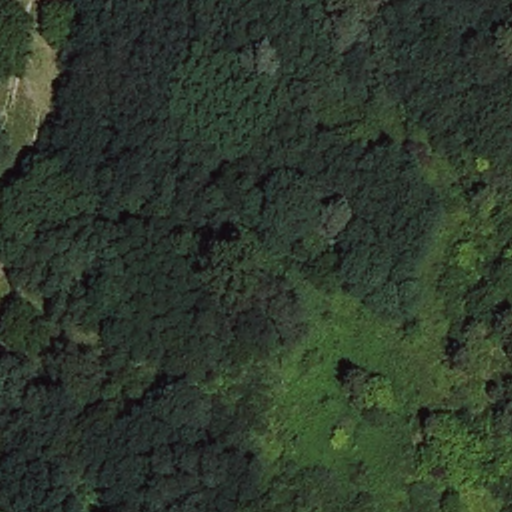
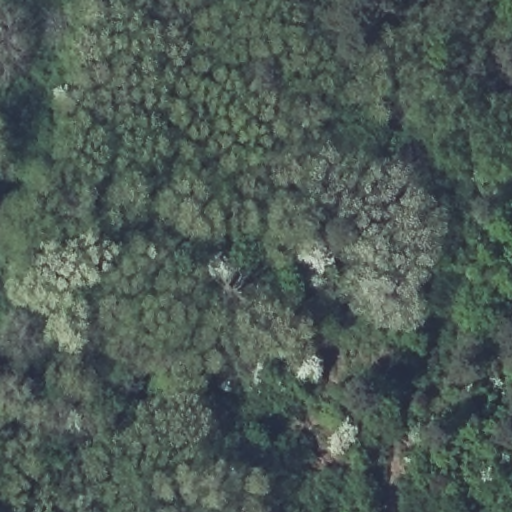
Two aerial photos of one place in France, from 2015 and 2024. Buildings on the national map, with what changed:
[]

